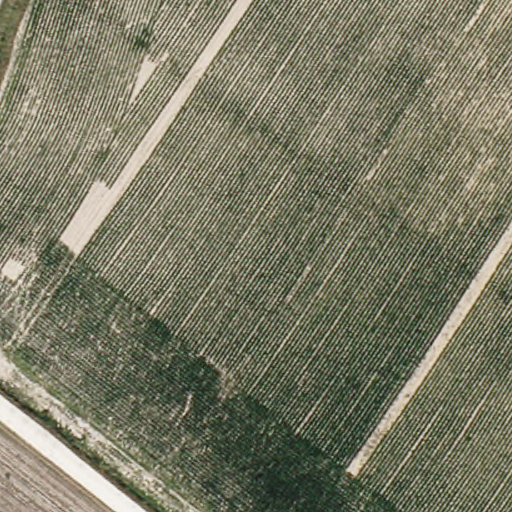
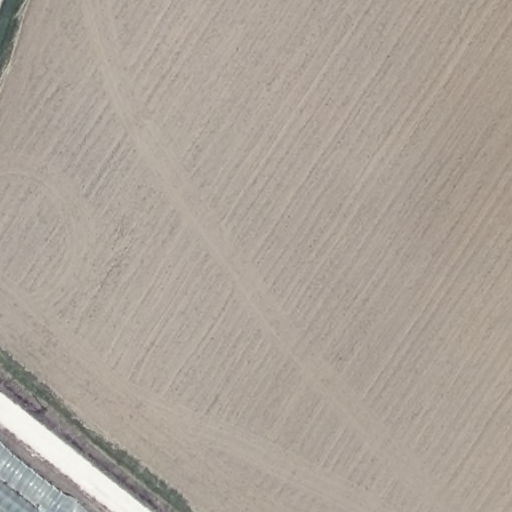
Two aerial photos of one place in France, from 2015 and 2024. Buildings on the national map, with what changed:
new [(94,512),(0,512),(0,437),(94,512)]

